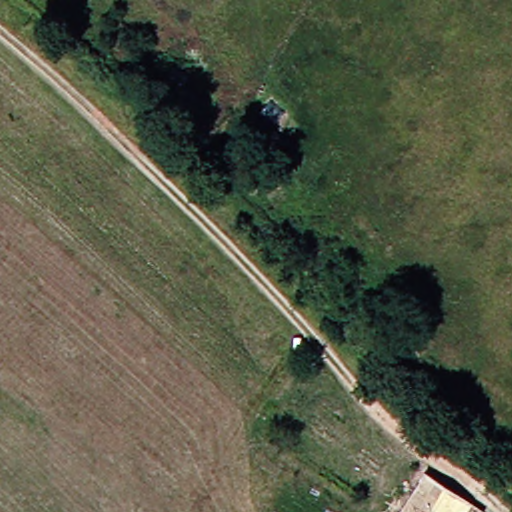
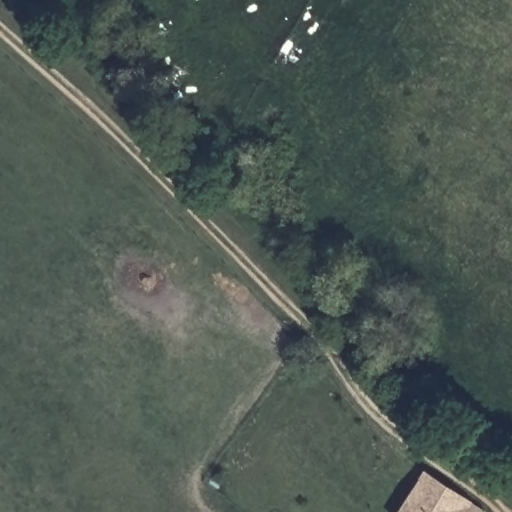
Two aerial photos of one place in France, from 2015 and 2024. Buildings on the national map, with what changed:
unchanged [(390,512),(415,473),(459,502),(473,511),(472,512),(390,512)]

